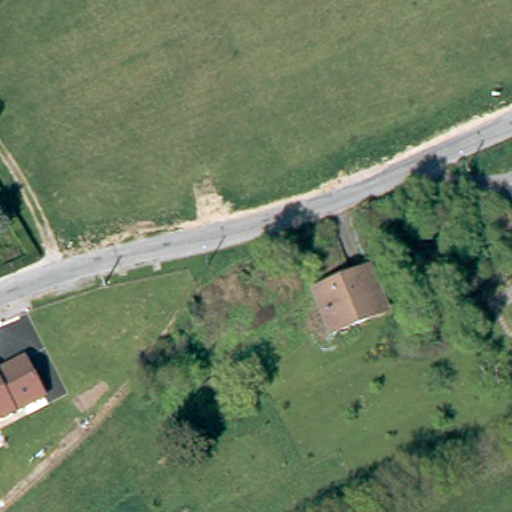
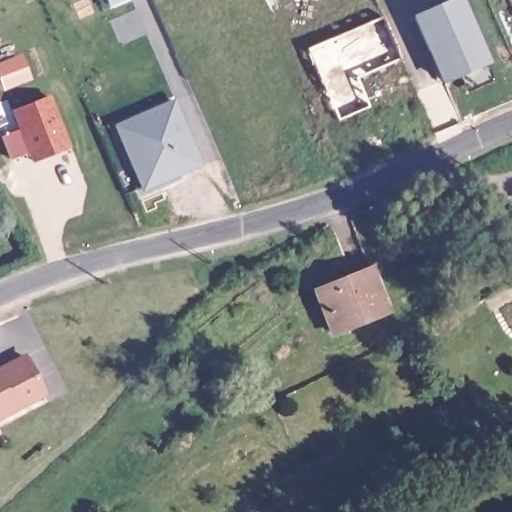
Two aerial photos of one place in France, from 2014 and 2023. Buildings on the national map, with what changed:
new [(440,86),(410,16),(445,0),(463,0),(491,63),(440,86)]
new [(23,56),(25,61),(32,78),(6,88),(0,71),(0,65),(11,60),(23,56)]
new [(35,161),(31,151),(16,111),(51,98),(66,138),(70,147),(35,161)]
new [(145,188),(132,158),(118,125),(133,119),(175,101),(202,164),(183,172),(173,176),(145,188)]
unchanged [(382,306),(328,328),(312,289),(348,275),(346,270),(365,263),(382,306)]
unchanged [(38,393),(0,414),(0,366),(19,355),(38,393)]
unchanged [(229,400),(217,408),(202,386),(214,378),(229,400)]

